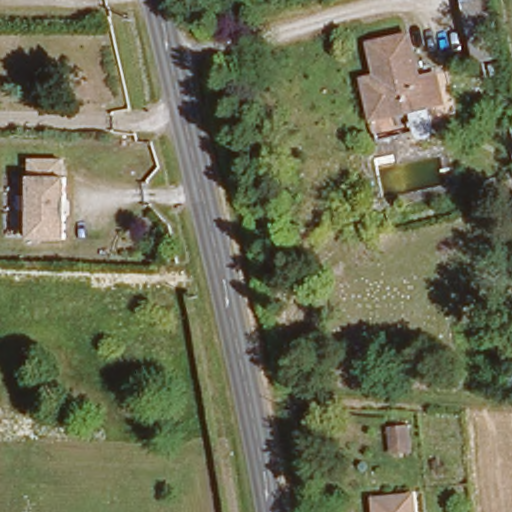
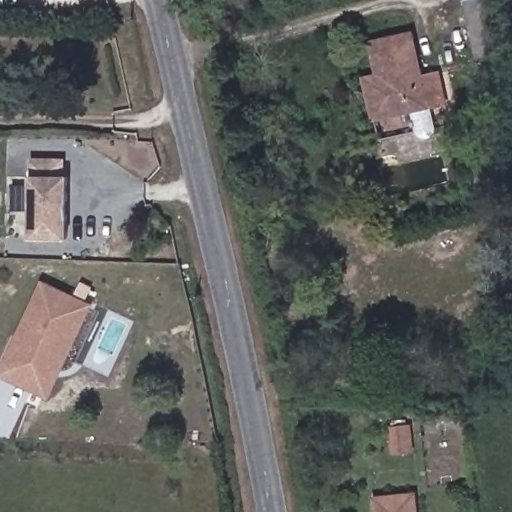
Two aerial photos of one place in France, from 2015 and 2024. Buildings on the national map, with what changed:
unchanged [(476,50),(466,0),(492,0),(501,44),(476,50)]
unchanged [(370,121),(365,92),(361,78),(376,75),(370,42),(410,32),(418,79),(435,75),(441,104),(410,112),(386,117),(370,121)]
unchanged [(67,176),(66,201),(60,201),(60,215),(65,214),(66,238),(28,236),(30,156),(61,156),(61,176),(67,176)]
new [(49,400),(0,376),(0,369),(42,280),(94,303),(49,400)]
unchanged [(376,421),(392,419),(393,446),(378,446),(376,421)]
unchanged [(409,492),(411,512),(374,512),(372,496),(409,492)]

